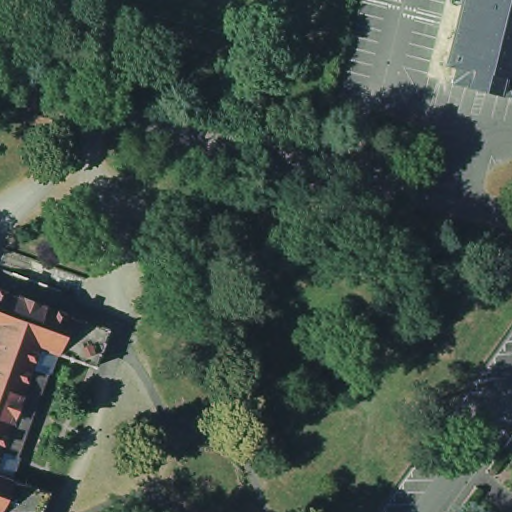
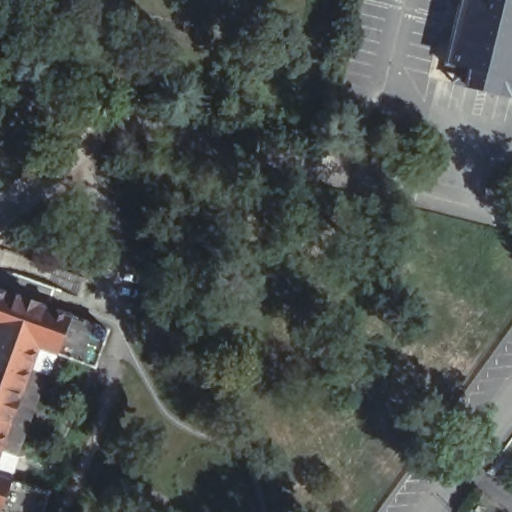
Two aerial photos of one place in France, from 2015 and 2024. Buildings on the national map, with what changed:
unchanged [(503,71),(499,91),(461,82),(465,63),(446,58),(460,0),(512,0),(512,74),(503,71)]
unchanged [(60,288),(53,307),(112,327),(98,369),(59,356),(53,375),(35,369),(4,451),(22,458),(15,477),(53,491),(46,512),(0,512),(0,288),(11,292),(18,272),(60,288)]

